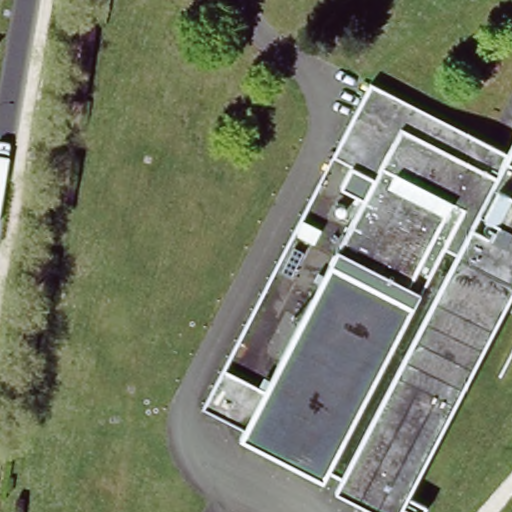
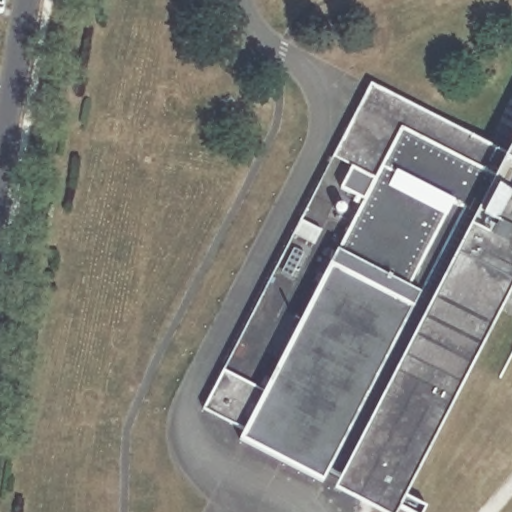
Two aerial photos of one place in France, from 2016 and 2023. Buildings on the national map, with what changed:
unchanged [(425,503),(420,512),(399,501),(349,475),(342,489),(241,436),(248,423),(208,403),(230,359),(272,379),(377,181),(334,158),(372,84),(506,153),(512,141),(512,283),(404,491),(425,503)]

